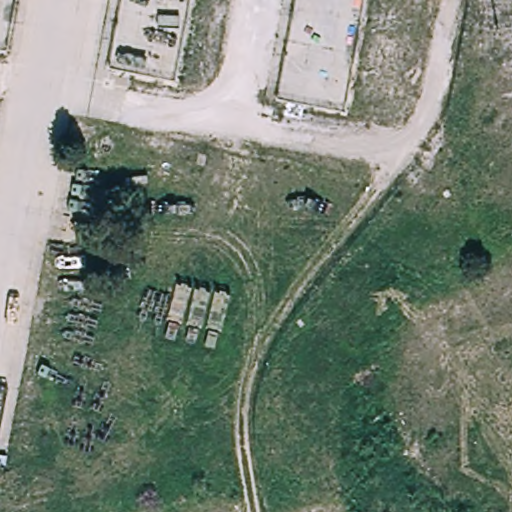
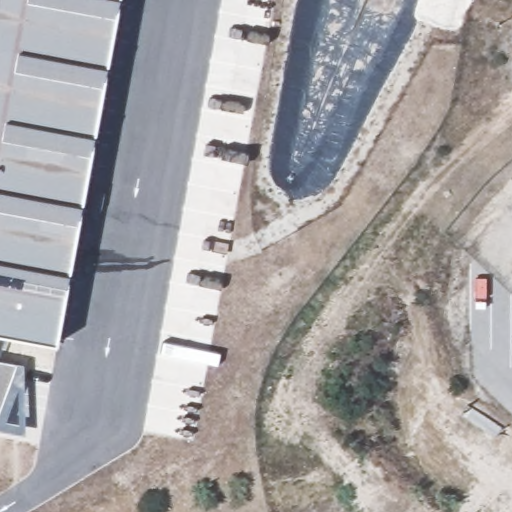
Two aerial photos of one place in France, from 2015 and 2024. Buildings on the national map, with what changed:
new [(0,335),(0,0),(120,0),(56,345),(0,335)]
new [(24,364),(26,435),(0,430),(0,360),(24,364)]

